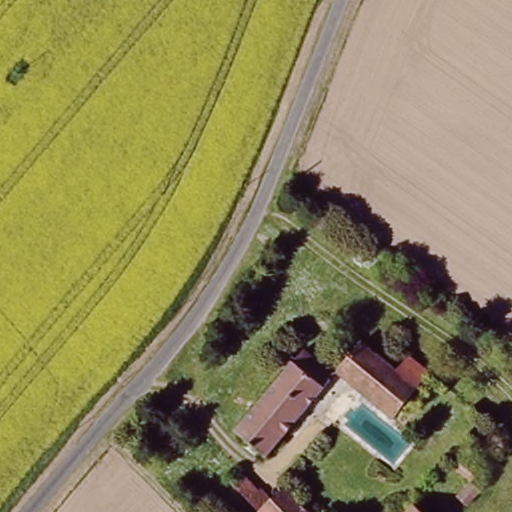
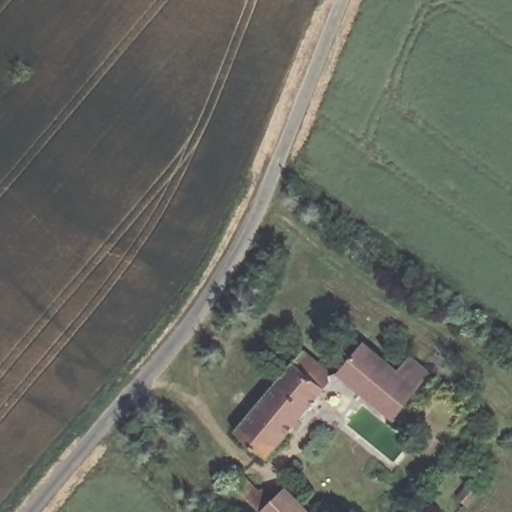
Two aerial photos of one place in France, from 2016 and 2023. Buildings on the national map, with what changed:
unchanged [(398,406),(392,414),(336,368),(362,337),(397,366),(409,351),(430,368),(417,384),(398,406)]
unchanged [(238,431),(302,348),(326,367),(327,380),(269,455),(238,431)]
unchanged [(457,465),(463,456),(483,469),(476,478),(457,465)]
unchanged [(257,512),(231,487),(241,477),(253,489),(258,486),(272,500),(285,488),(309,512),(257,512)]
unchanged [(460,497),(476,478),(485,484),(469,505),(460,497)]
unchanged [(419,512),(417,512),(417,511),(419,512)]

